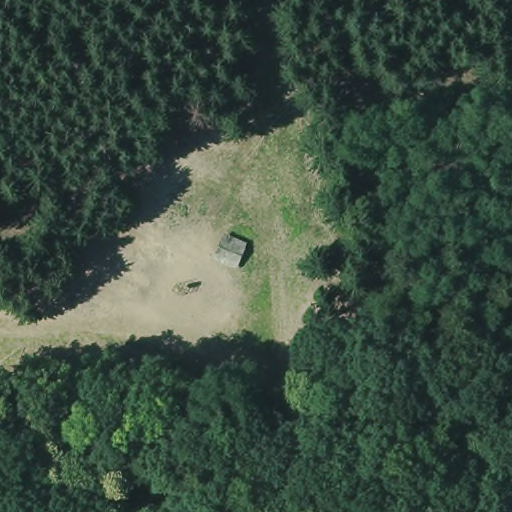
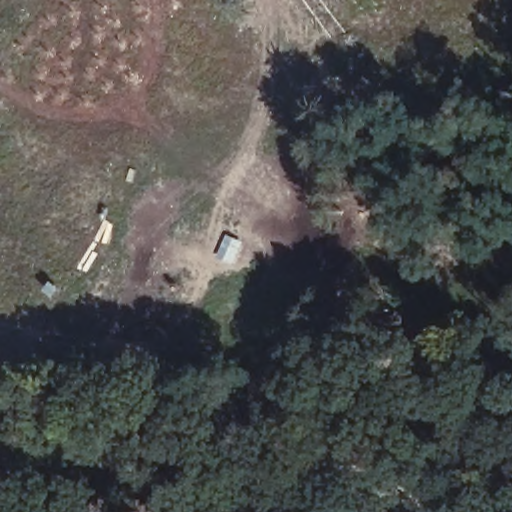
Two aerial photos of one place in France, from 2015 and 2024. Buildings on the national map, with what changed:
unchanged [(234,262),(219,255),(227,237),(241,244),(234,262)]

